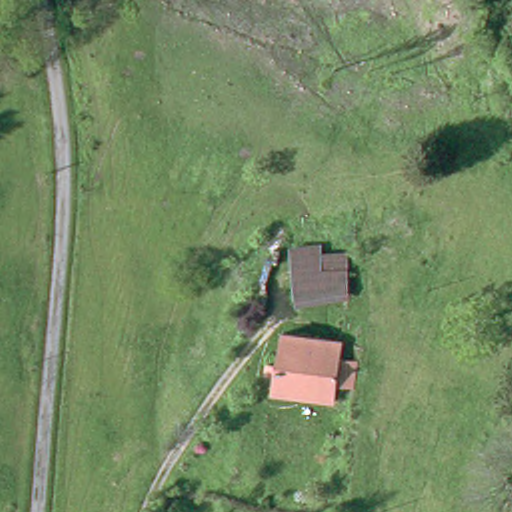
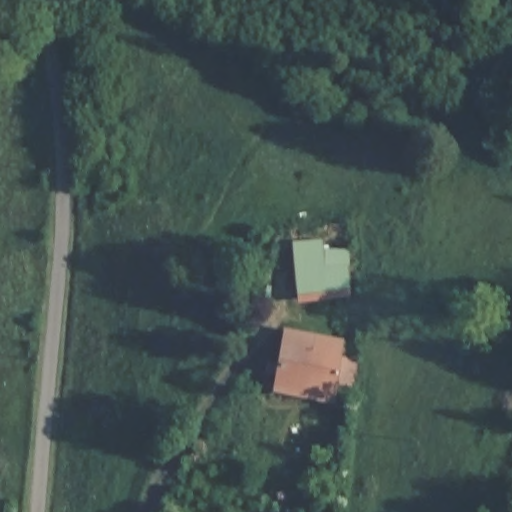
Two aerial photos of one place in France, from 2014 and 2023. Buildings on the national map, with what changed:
unchanged [(282,292),(281,292),(280,288),(277,279),(305,272),(299,253),(317,248),(328,281),(282,292)]
unchanged [(332,393),(272,387),(274,373),(261,370),(262,361),(275,363),(277,327),(338,336),(337,350),(356,352),(353,380),(335,376),(332,393)]

